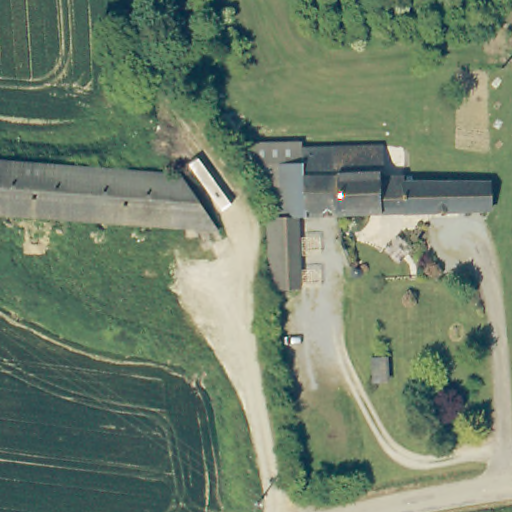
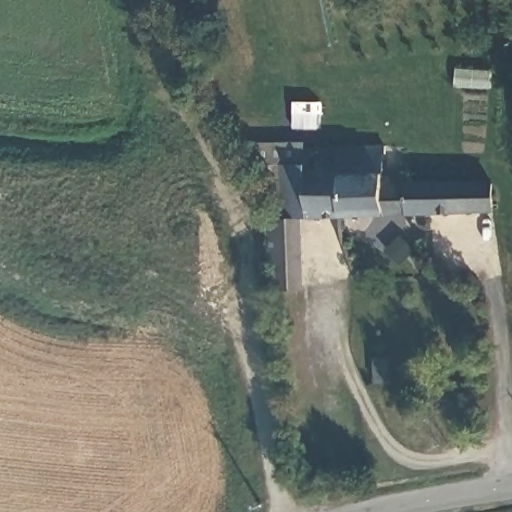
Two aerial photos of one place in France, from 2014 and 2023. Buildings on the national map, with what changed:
unchanged [(312,146),(391,143),(393,171),(417,171),(417,175),(512,178),(512,207),(499,207),(280,215),(278,165),(312,163),(312,146)]
demolished [(98,204),(88,224),(0,217),(0,166),(43,167),(138,173),(98,204)]
demolished [(88,224),(98,204),(138,173),(161,175),(186,176),(192,184),(228,231),(88,224)]
unchanged [(299,220),(299,292),(270,291),(267,221),(299,220)]

